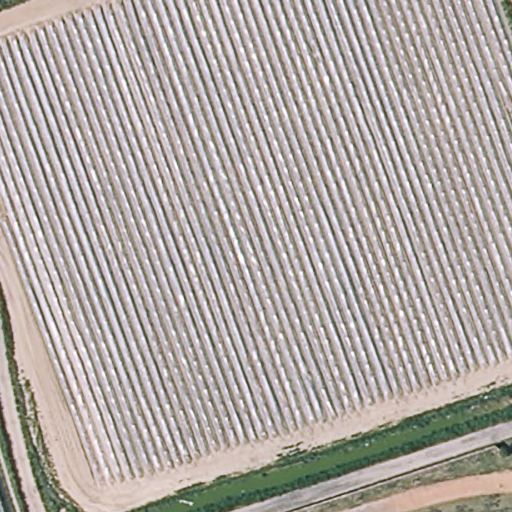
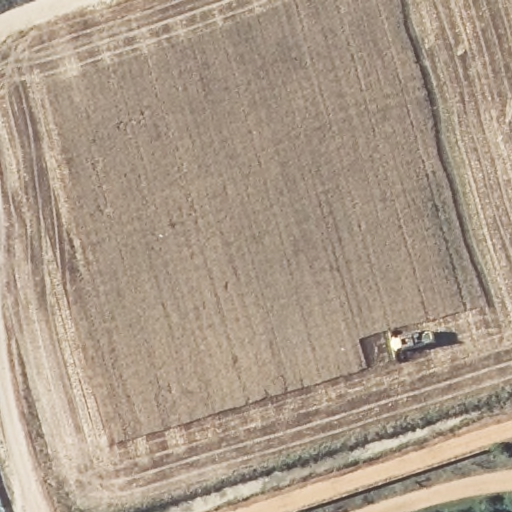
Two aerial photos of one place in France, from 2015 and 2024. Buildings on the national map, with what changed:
unchanged [(9,512),(0,512),(0,486),(9,512)]

